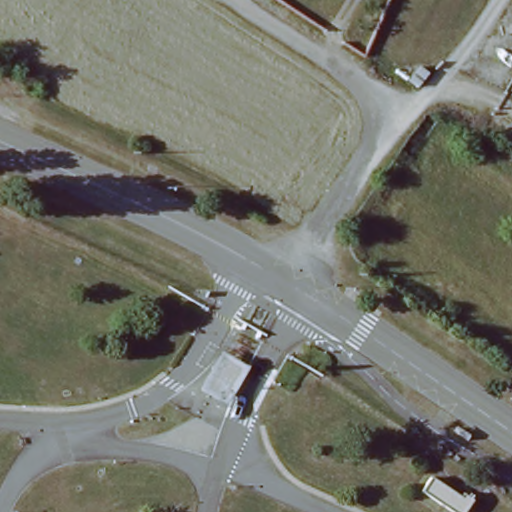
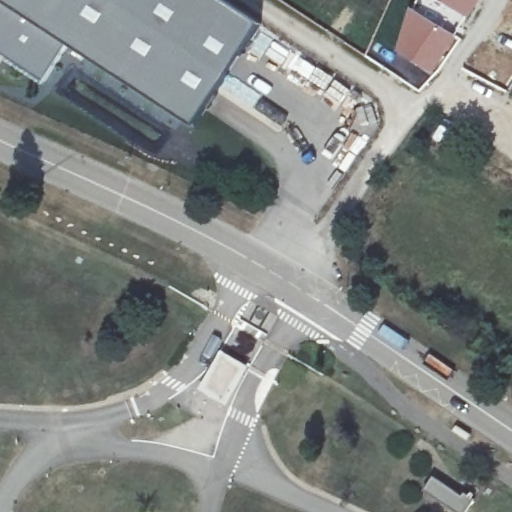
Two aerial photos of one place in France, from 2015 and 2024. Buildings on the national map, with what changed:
new [(194,125),(69,42),(45,85),(0,57),(0,0),(224,0),(261,24),(194,125)]
new [(451,11),(449,13),(432,0),(480,0),(467,20),(451,11)]
new [(414,5),(447,22),(462,34),(433,74),(397,49),(414,5)]
unchanged [(236,410),(204,394),(224,356),(251,371),(236,410)]
unchanged [(423,491),(433,477),(462,496),(464,493),(474,499),(465,512),(454,512),(423,491)]

